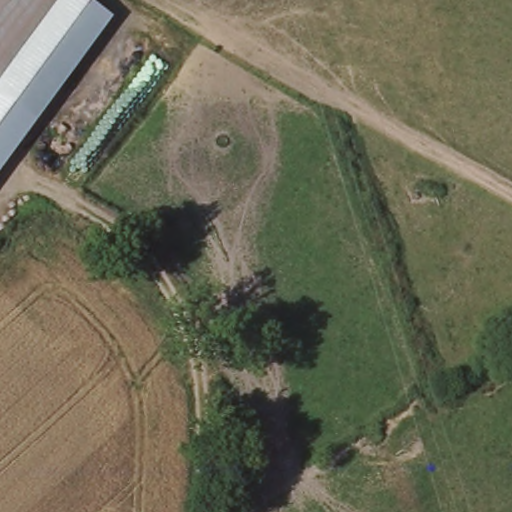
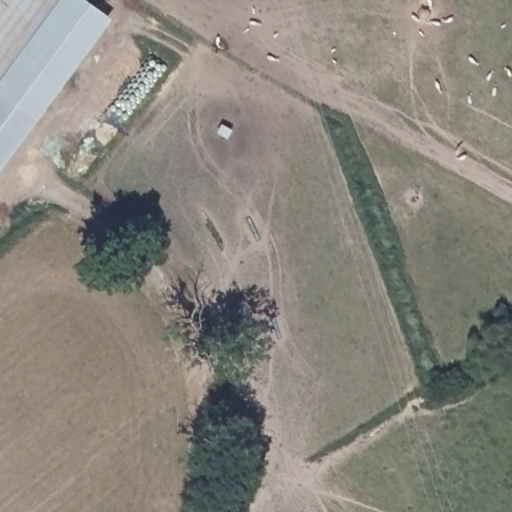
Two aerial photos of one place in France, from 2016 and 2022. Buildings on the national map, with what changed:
unchanged [(0,93),(0,0),(81,0),(9,99),(0,93)]
unchanged [(36,119),(9,99),(81,0),(84,0),(110,18),(36,119)]
unchanged [(9,99),(36,119),(0,169),(0,93),(9,99)]

